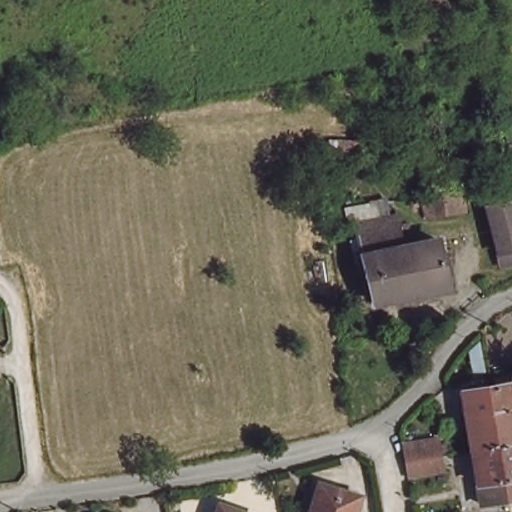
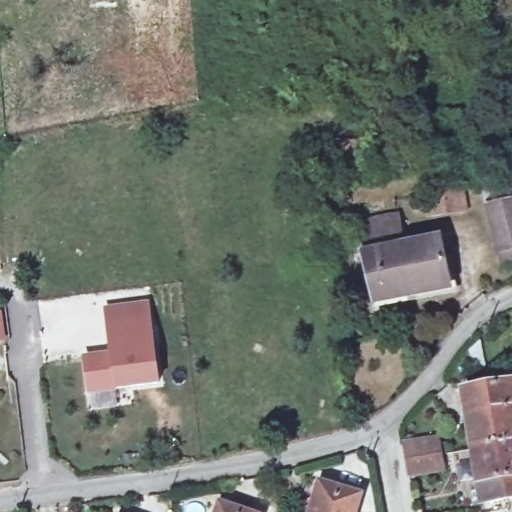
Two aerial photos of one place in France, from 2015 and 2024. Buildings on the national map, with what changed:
unchanged [(421,196),(425,195),(460,190),(464,210),(425,216),(422,201),(421,196)]
unchanged [(498,249),(490,205),(512,199),(512,246),(498,249)]
unchanged [(392,221),(400,254),(436,245),(447,293),(372,308),(350,230),(392,221)]
new [(147,303),(155,387),(82,395),(80,355),(106,352),(101,306),(147,303)]
new [(0,338),(0,327),(1,337),(0,338)]
unchanged [(503,390),(506,404),(512,403),(512,437),(495,440),(487,393),(503,390)]
unchanged [(495,440),(470,445),(463,397),(487,393),(495,440)]
unchanged [(505,493),(495,440),(512,437),(512,492),(505,493)]
unchanged [(406,446),(440,439),(443,455),(445,470),(411,476),(409,461),(406,446)]
unchanged [(505,493),(480,497),(470,445),(495,440),(505,493)]
unchanged [(357,497),(353,512),(315,512),(317,503),(311,502),(316,483),(357,497)]
unchanged [(236,512),(215,512),(217,506),(236,512)]

